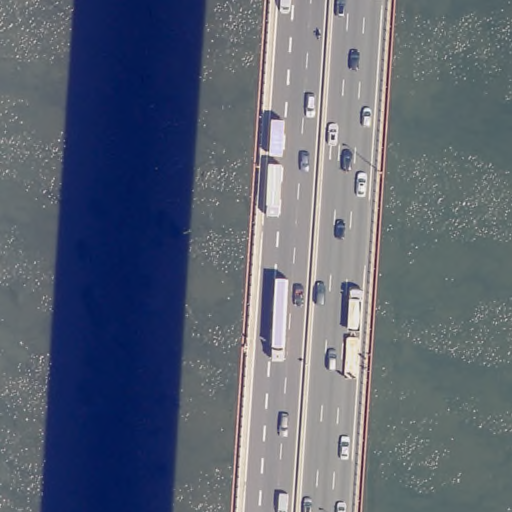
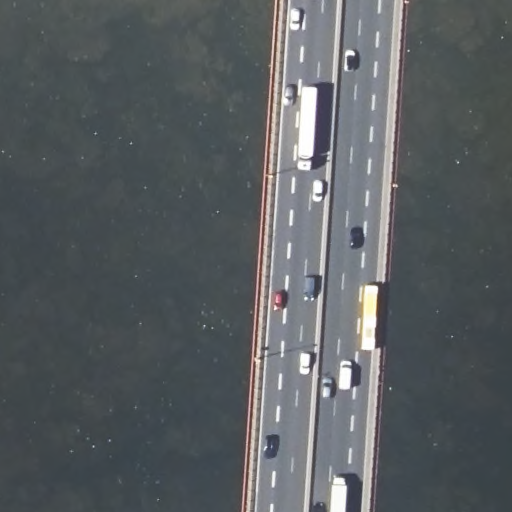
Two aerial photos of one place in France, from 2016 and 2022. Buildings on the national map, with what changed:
[]

